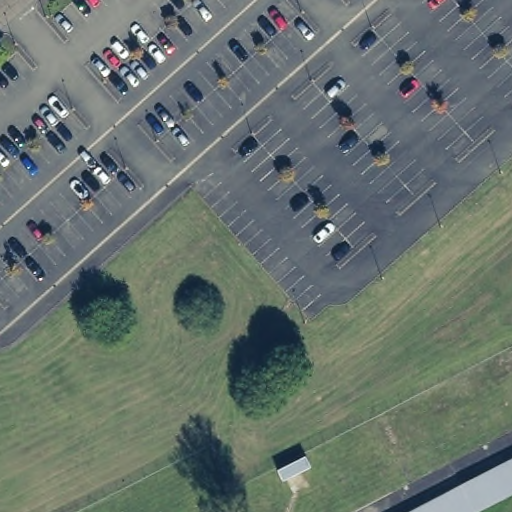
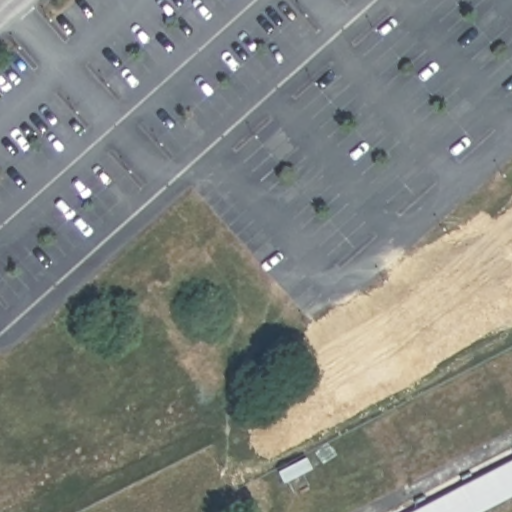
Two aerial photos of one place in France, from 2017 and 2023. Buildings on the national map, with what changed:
unchanged [(512,457),(512,488),(465,512),(406,512),(512,457)]

